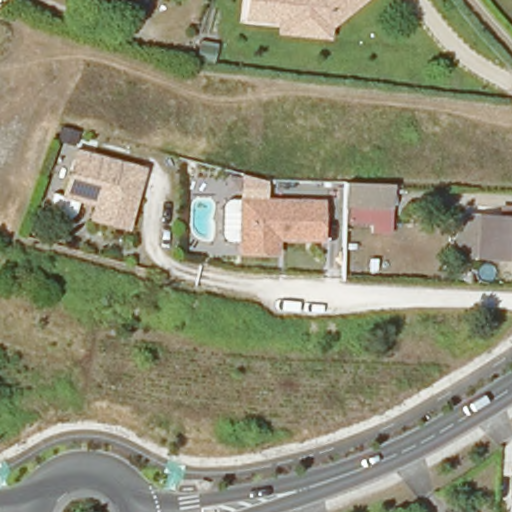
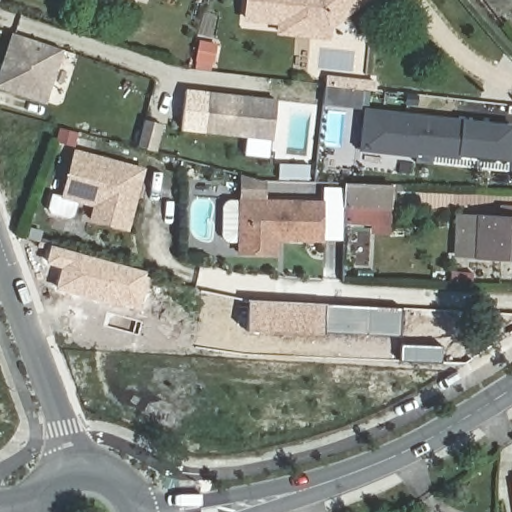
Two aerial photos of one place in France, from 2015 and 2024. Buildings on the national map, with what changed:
unchanged [(130,2),(125,0),(131,0),(130,2)]
unchanged [(335,20),(328,12),(325,15),(281,10),(280,20),(245,16),(247,0),(361,0),(335,20)]
unchanged [(331,24),(331,38),(279,33),(280,20),(281,10),(325,15),(328,12),(335,20),(331,24)]
new [(0,89),(0,66),(12,34),(64,51),(46,104),(0,89)]
new [(325,98),(326,84),(364,89),(361,109),(324,105),(325,98)]
new [(273,141),(204,133),(209,92),(277,100),(273,141)]
new [(510,160),(460,156),(459,160),(361,150),(366,108),(512,123),(512,144),(510,160)]
new [(144,119),(161,124),(154,150),(137,146),(144,119)]
unchanged [(81,136),(77,150),(59,145),(63,131),(81,136)]
unchanged [(73,221),(48,214),(45,210),(49,195),(67,200),(79,154),(139,170),(147,172),(143,187),(131,232),(95,222),(98,208),(81,204),(77,218),(73,221)]
unchanged [(346,183),(391,185),(390,208),(345,206),(346,183)]
unchanged [(277,253),(240,252),(241,199),(323,202),(322,239),(290,239),(278,238),(277,253)]
unchanged [(473,256),(453,255),(454,216),(475,217),(512,219),(512,259),(473,256)]
new [(46,264),(52,245),(147,272),(147,276),(150,277),(141,309),(125,306),(125,307),(56,289),(61,268),(46,264)]
new [(324,333),(324,335),(247,330),(248,299),(326,303),(325,305),(402,308),(399,337),(324,333)]

